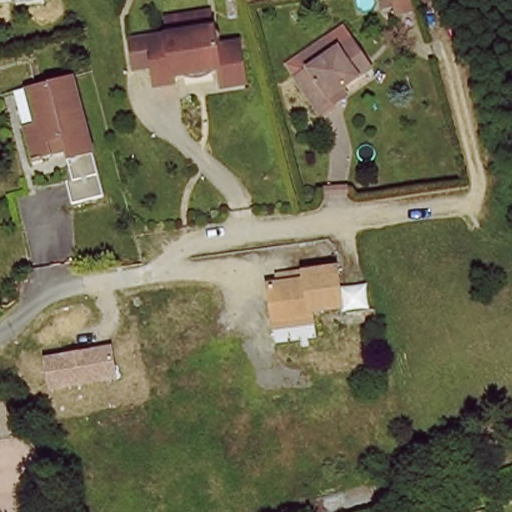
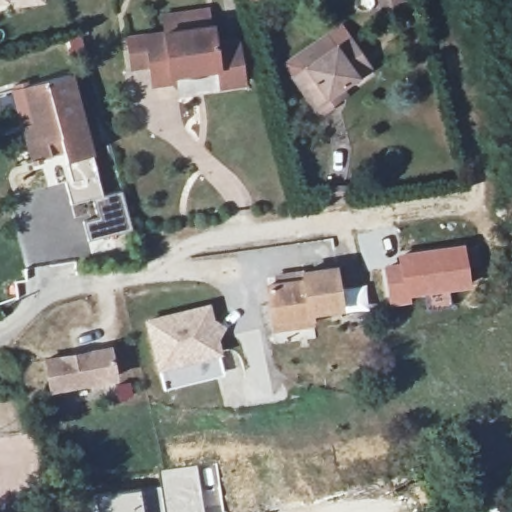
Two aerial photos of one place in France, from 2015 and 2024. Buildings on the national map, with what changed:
unchanged [(22,8),(21,1),(0,4),(0,0),(47,0),(48,4),(22,8)]
unchanged [(170,22),(170,20),(212,16),(212,17),(213,33),(217,33),(219,49),(243,48),(247,90),(220,93),(218,77),(172,80),(172,90),(154,92),(150,66),(133,67),(130,40),(149,38),(172,37),(170,22)]
unchanged [(341,110),(320,122),(290,70),(352,34),(365,55),(375,72),(362,80),(333,98),(341,110)]
unchanged [(107,195),(72,205),(68,181),(75,178),(62,137),(50,139),(55,154),(32,160),(24,130),(35,126),(25,89),(74,77),(107,195)]
new [(397,260),(395,252),(463,241),(471,289),(448,292),(450,304),(428,307),(427,295),(411,298),(412,301),(388,305),(380,263),(397,260)]
unchanged [(295,282),(293,273),(347,266),(352,306),(301,313),(302,319),(262,323),(257,287),(295,282)]
new [(210,309),(220,353),(213,355),(219,378),(166,390),(150,323),(210,309)]
unchanged [(115,354),(120,383),(55,394),(50,365),(115,354)]
new [(198,464),(205,512),(162,512),(159,489),(160,469),(198,464)]
new [(142,488),(144,512),(95,512),(93,495),(142,488)]

